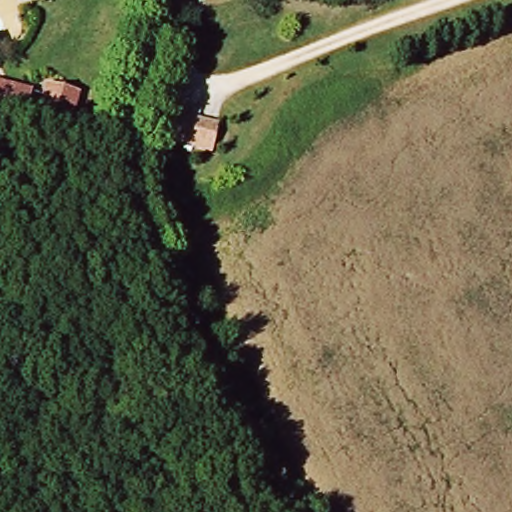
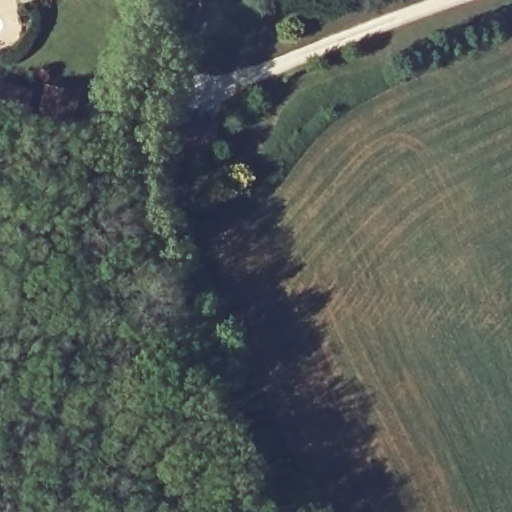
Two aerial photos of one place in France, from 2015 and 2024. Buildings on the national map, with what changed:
unchanged [(85,85),(75,124),(44,116),(54,77),(85,85)]
unchanged [(25,125),(0,118),(0,87),(32,95),(25,125)]
unchanged [(214,159),(169,146),(177,117),(222,128),(214,159)]

